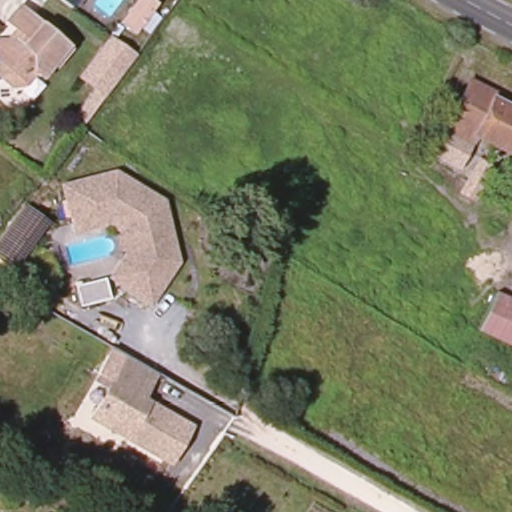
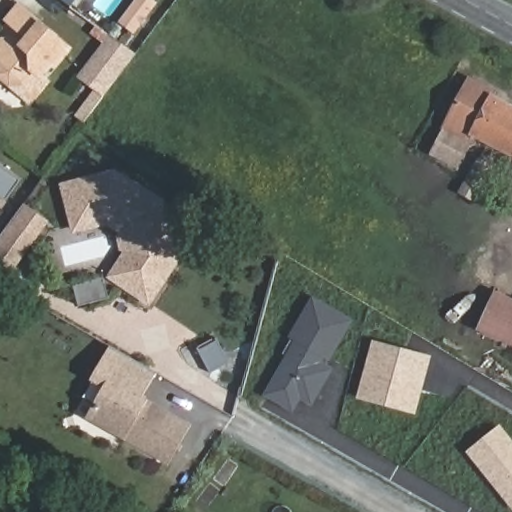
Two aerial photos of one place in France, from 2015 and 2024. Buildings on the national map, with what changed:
unchanged [(62,5),(62,6),(54,0),(66,0),(62,5)]
new [(140,0),(150,0),(157,5),(136,33),(122,23),(140,0)]
unchanged [(14,88),(0,78),(0,40),(10,39),(11,38),(15,37),(17,36),(20,32),(9,24),(17,12),(65,47),(52,63),(46,59),(35,74),(37,72),(50,81),(31,106),(12,90),(14,88)]
unchanged [(134,50),(83,124),(72,117),(91,87),(75,76),(110,33),(134,50)]
unchanged [(442,130),(450,115),(468,82),(494,95),(491,100),(512,110),(512,120),(496,149),(473,137),(469,144),(442,130)]
unchanged [(496,149),(512,120),(512,157),(496,149)]
unchanged [(487,168),(490,169),(483,181),(481,180),(470,174),(476,162),(487,168)]
new [(5,201),(0,198),(0,164),(21,179),(5,201)]
unchanged [(134,249),(128,245),(126,236),(130,231),(113,221),(80,229),(78,222),(70,184),(120,171),(166,199),(181,259),(156,301),(124,281),(117,277),(134,249)]
new [(0,285),(0,238),(25,203),(50,221),(4,287),(0,285)]
unchanged [(483,325),(503,290),(512,296),(512,342),(483,325)]
new [(291,357),(304,354),(310,344),(295,336),(316,300),(353,321),(332,357),(327,354),(322,363),(333,370),(315,402),(304,395),(296,409),(270,394),(291,357)]
new [(377,345),(430,359),(416,412),(363,398),(377,345)]
unchanged [(139,402),(188,431),(167,466),(90,421),(110,386),(97,379),(113,351),(155,375),(139,402)]
new [(512,440),(512,509),(467,453),(501,426),(512,440)]

